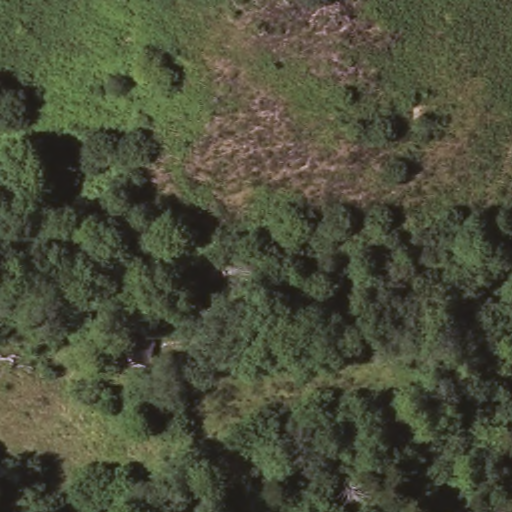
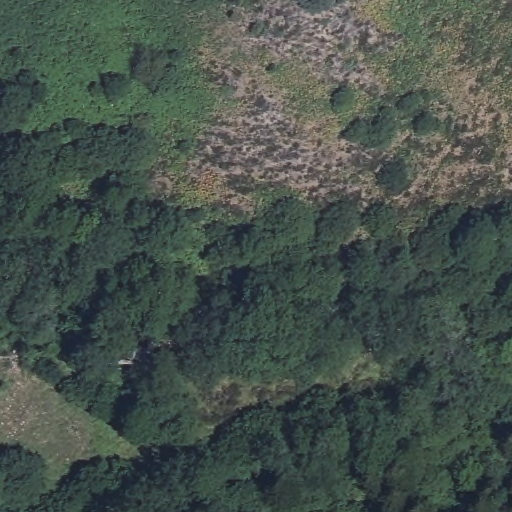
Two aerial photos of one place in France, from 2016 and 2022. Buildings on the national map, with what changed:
unchanged [(149,346),(145,372),(109,366),(116,315),(152,321),(149,346)]

